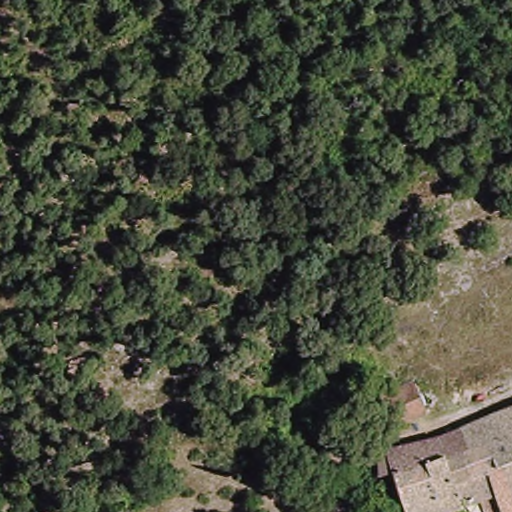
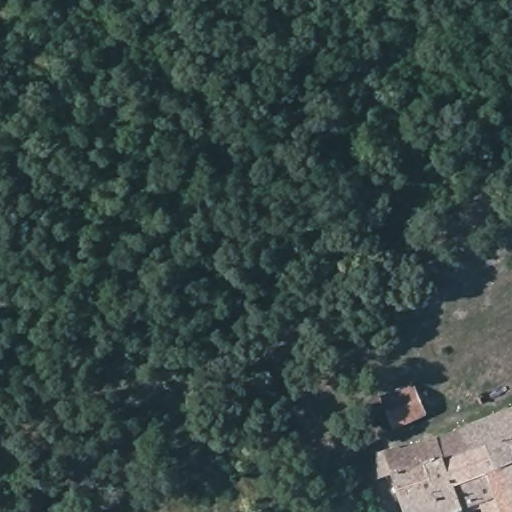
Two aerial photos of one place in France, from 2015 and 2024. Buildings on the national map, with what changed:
unchanged [(424,406),(396,421),(382,394),(410,382),(424,406)]
unchanged [(384,465),(379,454),(454,429),(512,409),(512,512),(404,512),(391,480),(384,465)]
unchanged [(330,512),(305,512),(304,509),(323,499),(330,512)]

